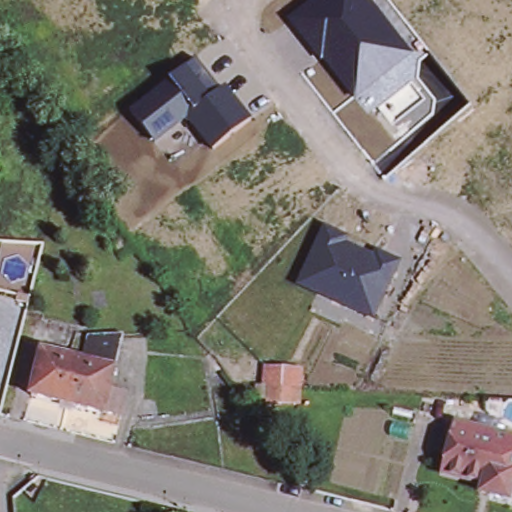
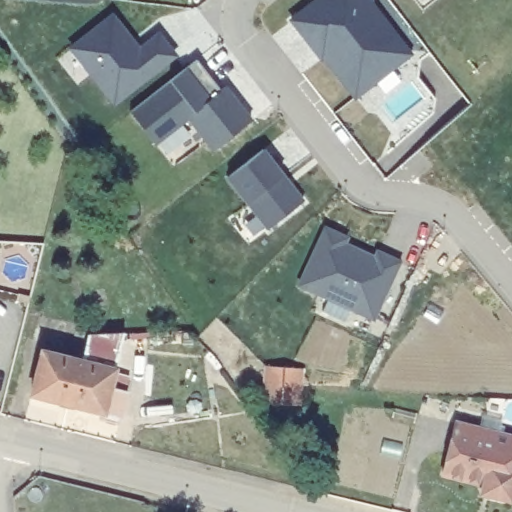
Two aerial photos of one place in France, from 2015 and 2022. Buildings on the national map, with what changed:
unchanged [(320,61),(287,18),(311,0),(371,0),(414,54),(355,98),(322,59),(320,61)]
new [(113,14),(141,50),(160,34),(177,59),(115,106),(70,48),(113,14)]
unchanged [(130,109),(196,59),(220,90),(225,87),(251,118),(212,150),(188,119),(156,143),(130,109)]
new [(245,200),(227,178),(265,150),(282,174),(303,200),(267,228),(245,200)]
unchanged [(297,285),(324,226),(352,238),(350,245),(375,255),(377,249),(402,261),(375,320),(297,285)]
unchanged [(85,338),(122,335),(112,372),(79,363),(85,338)]
unchanged [(77,363),(66,406),(29,397),(40,353),(77,363)]
unchanged [(119,419),(102,415),(66,406),(77,363),(79,363),(112,372),(109,390),(125,394),(119,419)]
unchanged [(256,401),(255,384),(264,384),(264,366),(304,367),(302,404),(256,401)]
unchanged [(512,439),(512,480),(507,501),(489,496),(491,487),(481,485),(442,475),(455,425),(512,439)]

